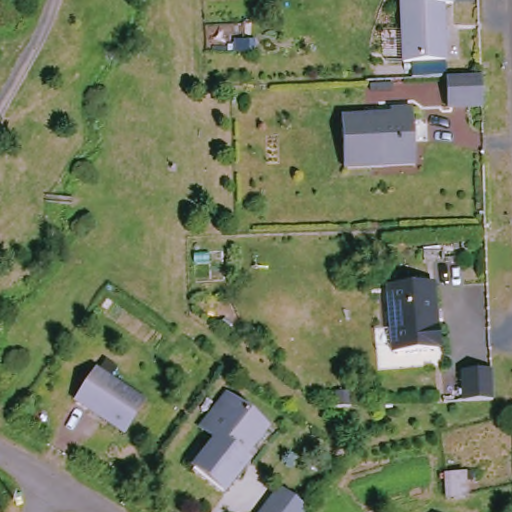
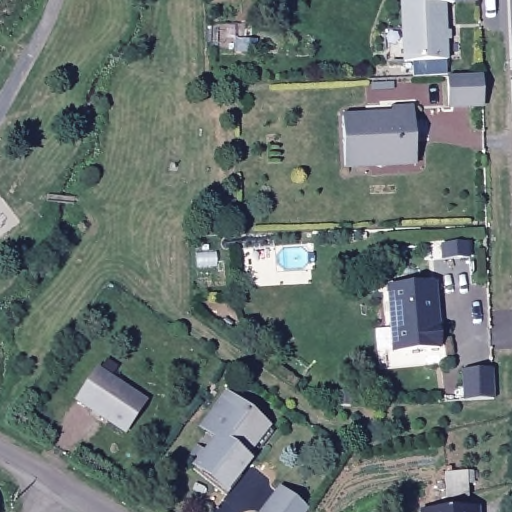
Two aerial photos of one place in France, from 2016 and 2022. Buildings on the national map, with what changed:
unchanged [(437,1),(444,58),(402,63),(395,0),(447,0),(437,1)]
unchanged [(443,74),(476,73),(477,105),(445,105),(443,74)]
unchanged [(365,115),(366,121),(394,121),(394,111),(413,112),(416,166),(343,168),(341,116),(365,115)]
unchanged [(427,279),(429,318),(436,318),(436,348),(388,351),(385,283),(427,279)]
unchanged [(96,369),(103,358),(114,366),(106,377),(141,403),(119,432),(72,396),(93,367),(96,369)]
unchanged [(489,366),(491,399),(462,399),(462,367),(489,366)]
unchanged [(340,409),(336,409),(336,394),(350,394),(350,409),(340,409)]
unchanged [(212,462),(222,448),(207,436),(220,421),(224,423),(220,419),(232,404),(236,408),(260,427),(264,430),(250,448),(249,447),(239,460),(244,464),(221,493),(201,476),(192,469),(204,456),(212,462)]
unchanged [(272,488),(300,509),(297,512),(252,512),(272,488)]

